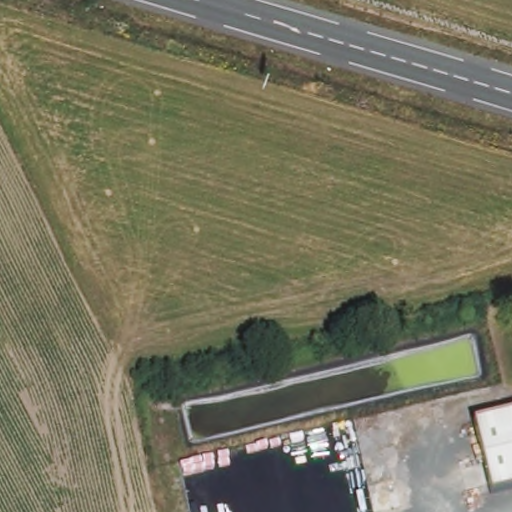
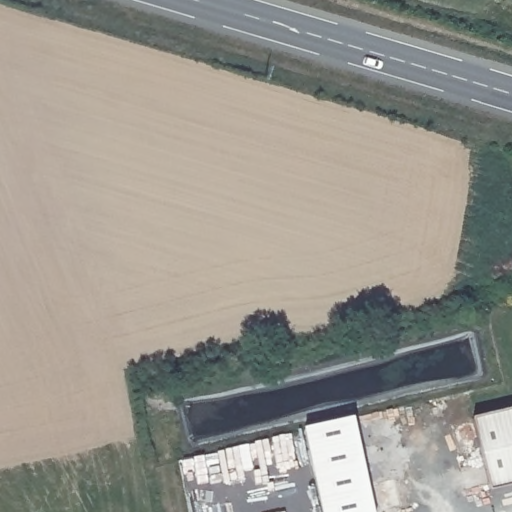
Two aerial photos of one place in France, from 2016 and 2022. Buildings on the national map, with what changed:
unchanged [(512,413),(512,487),(490,492),(473,422),(512,413)]
new [(375,512),(321,512),(303,431),(354,420),(375,512)]

